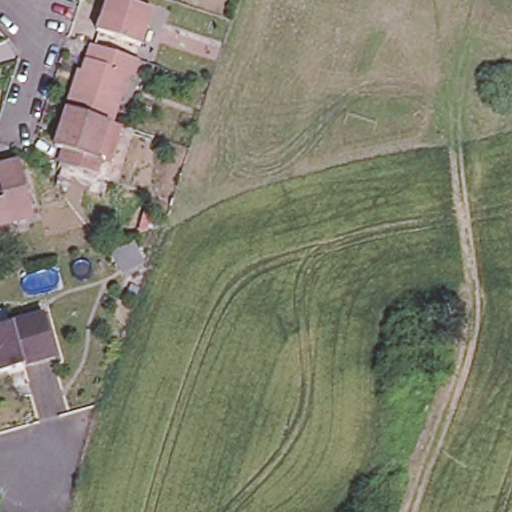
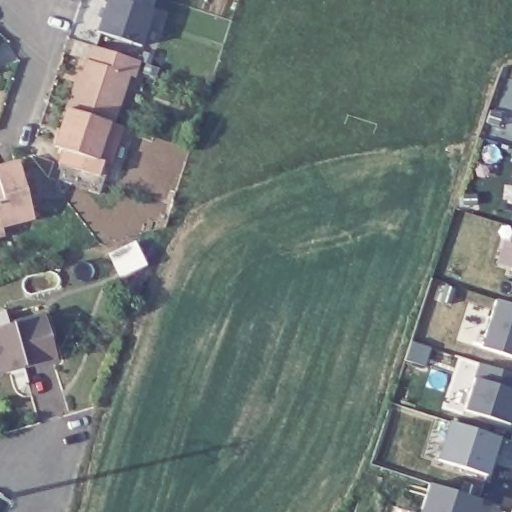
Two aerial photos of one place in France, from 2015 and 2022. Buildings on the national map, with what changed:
unchanged [(152,16),(140,51),(95,35),(107,0),(152,16)]
unchanged [(59,172),(64,156),(53,152),(65,115),(77,80),(80,81),(91,51),(135,67),(130,82),(124,80),(108,129),(118,132),(107,171),(100,169),(94,184),(59,172)]
unchanged [(23,164),(38,216),(5,226),(7,234),(0,236),(0,170),(1,170),(23,164)]
new [(511,272),(512,269),(512,272),(511,272)]
new [(512,304),(512,359),(481,350),(495,299),(512,304)]
unchanged [(48,356),(15,365),(15,362),(1,366),(1,369),(0,369),(0,322),(37,312),(48,356)]
new [(510,426),(465,410),(475,377),(480,362),(512,372),(512,419),(510,426)]
new [(503,441),(500,454),(496,451),(489,477),(436,461),(447,422),(500,437),(503,441)]
new [(433,487),(483,503),(481,512),(425,512),(433,487)]

